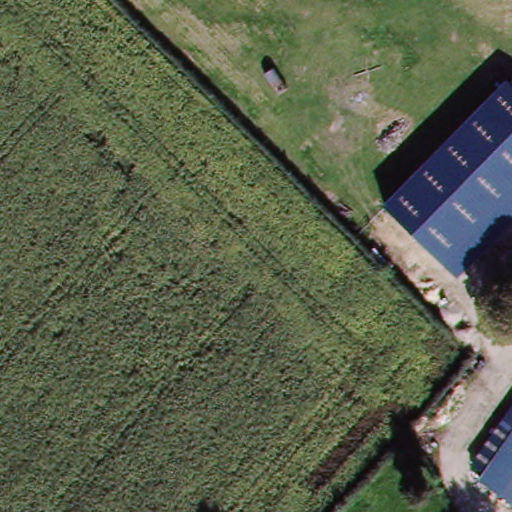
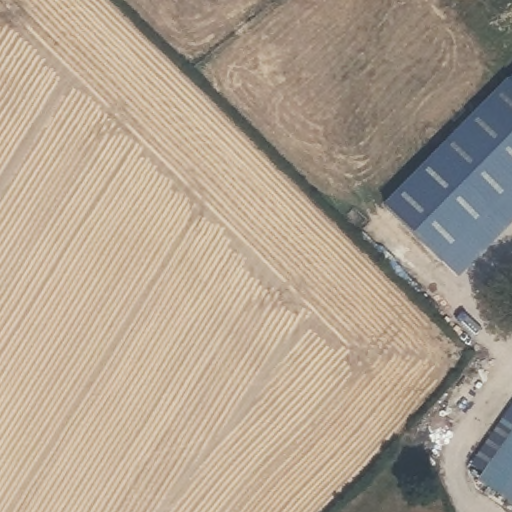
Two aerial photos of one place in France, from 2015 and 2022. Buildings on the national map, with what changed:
unchanged [(512,86),(512,222),(458,276),(387,205),(508,81),(512,86)]
unchanged [(512,503),(482,481),(512,440),(512,503)]

